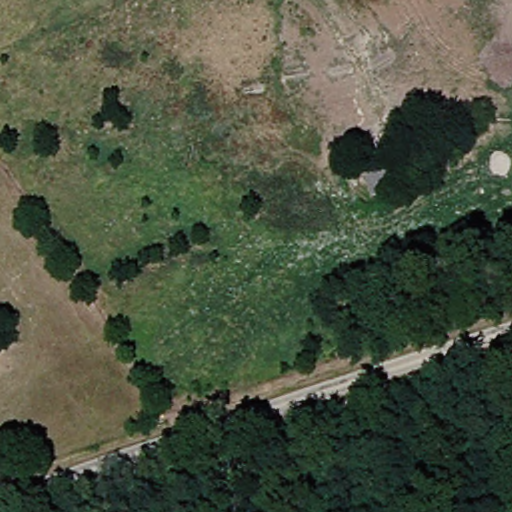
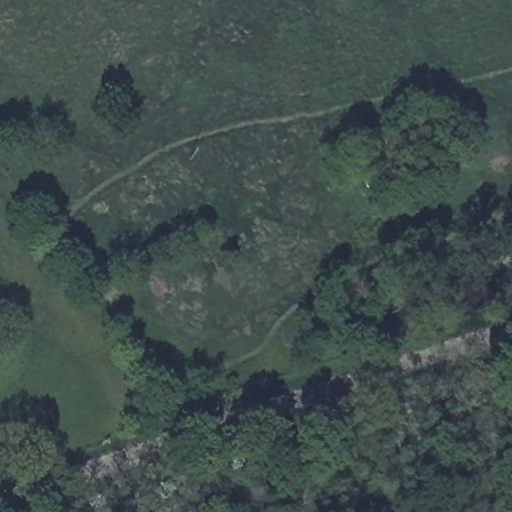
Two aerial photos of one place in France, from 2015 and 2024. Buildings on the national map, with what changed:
unchanged [(395,161),(403,186),(373,200),(361,173),(395,161)]

